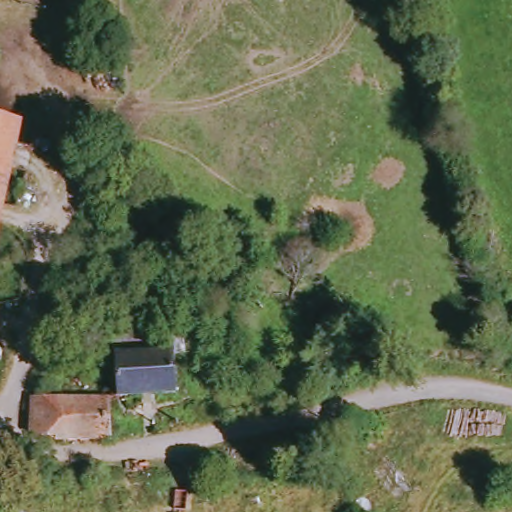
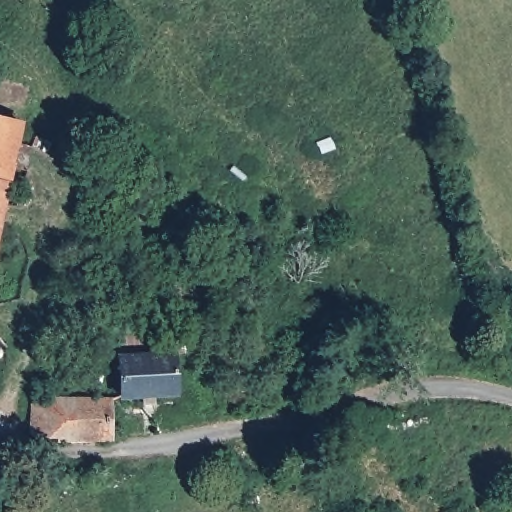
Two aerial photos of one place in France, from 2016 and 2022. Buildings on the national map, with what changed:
unchanged [(24,127),(0,246),(0,122),(24,127)]
unchanged [(115,358),(115,338),(175,334),(177,354),(175,355),(120,358),(115,358)]
unchanged [(175,355),(174,396),(121,399),(120,358),(175,355)]
unchanged [(70,436),(70,432),(43,432),(45,395),(112,400),(109,438),(70,436)]

